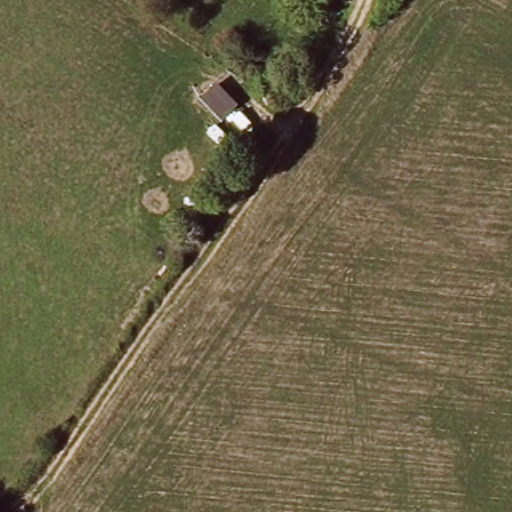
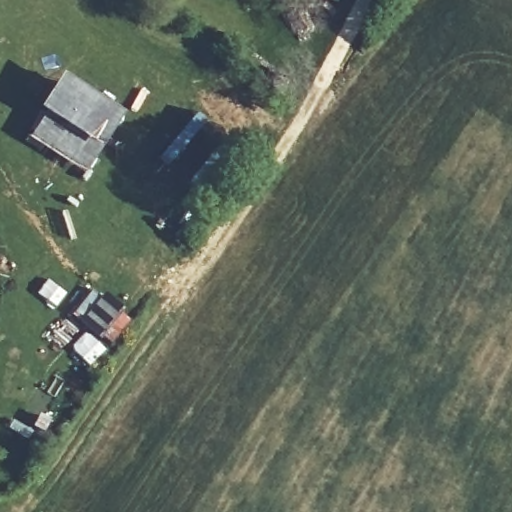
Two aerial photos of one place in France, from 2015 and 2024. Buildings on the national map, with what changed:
new [(45,111),(40,107),(63,71),(126,112),(87,173),(29,136),(45,111)]
unchanged [(217,85),(238,107),(221,123),(201,101),(217,85)]

